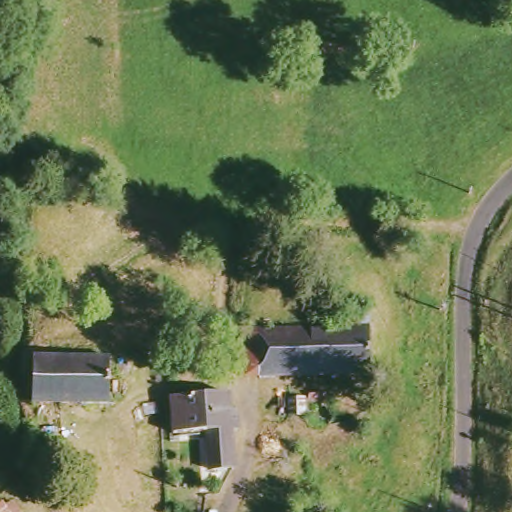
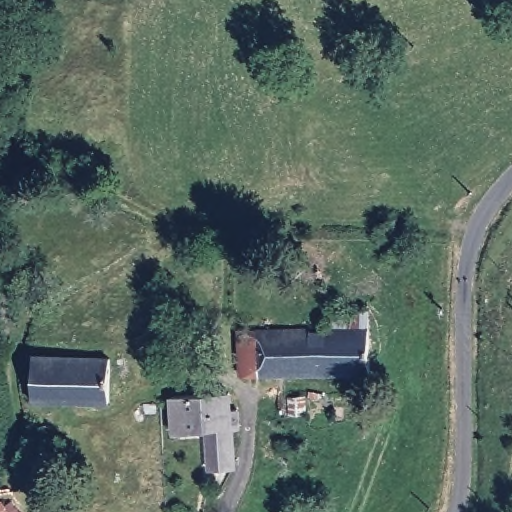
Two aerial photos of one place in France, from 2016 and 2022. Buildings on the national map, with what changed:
unchanged [(333,329),(334,312),(372,311),(375,372),(246,375),(244,331),(333,329)]
unchanged [(19,394),(29,394),(30,361),(106,363),(121,363),(120,399),(120,407),(106,407),(28,406),(28,404),(18,404),(19,394)]
unchanged [(226,397),(227,413),(231,412),(233,426),(238,425),(239,434),(233,435),(236,471),(232,472),(211,475),(206,436),(176,438),(173,403),(226,397)]
unchanged [(301,402),(317,401),(318,417),(301,417),(301,402)]
unchanged [(7,512),(5,512),(6,511),(7,512)]

